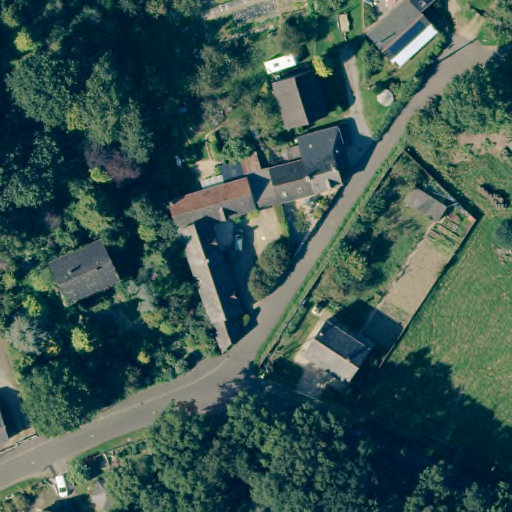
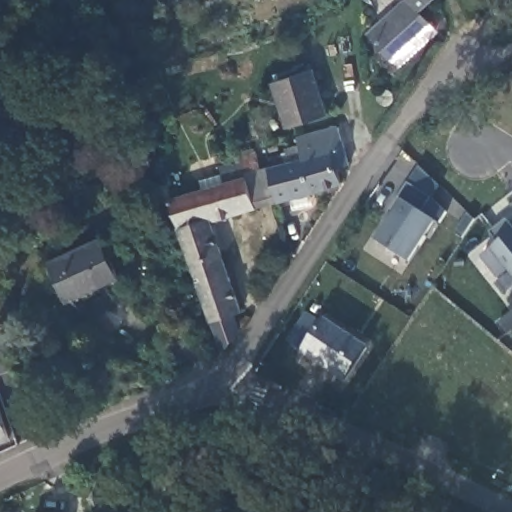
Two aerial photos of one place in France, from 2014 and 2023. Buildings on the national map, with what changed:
unchanged [(393,59),(370,33),(405,0),(435,0),(423,11),(433,22),(441,31),(400,67),(393,59)]
unchanged [(326,112),(288,125),(284,114),(273,80),(312,69),(326,112)]
unchanged [(396,99),(395,104),(391,106),(384,106),(381,104),(380,99),(381,94),(383,90),(389,90),(395,93),(396,99)]
unchanged [(331,169),(335,182),(310,190),(300,157),(293,139),(331,125),(344,165),(331,169)]
unchanged [(207,224),(240,321),(216,354),(165,202),(222,185),(217,169),(237,162),(235,155),(253,149),(259,171),(263,170),(271,203),(207,224)]
unchanged [(271,203),(263,170),(300,157),(310,190),(271,203)]
new [(393,215),(390,214),(411,182),(436,200),(426,212),(438,220),(411,261),(377,239),(393,215)]
demolished [(445,207),(437,221),(404,202),(411,189),(445,207)]
new [(500,246),(489,231),(507,217),(512,223),(512,276),(509,271),(498,278),(483,258),(500,246)]
unchanged [(99,237),(115,275),(66,296),(49,258),(99,237)]
unchanged [(364,350),(343,380),(302,351),(323,321),(364,350)]
unchanged [(0,438),(0,420),(5,436),(0,438)]
unchanged [(100,503),(105,490),(121,487),(133,500),(124,512),(105,512),(100,503)]

